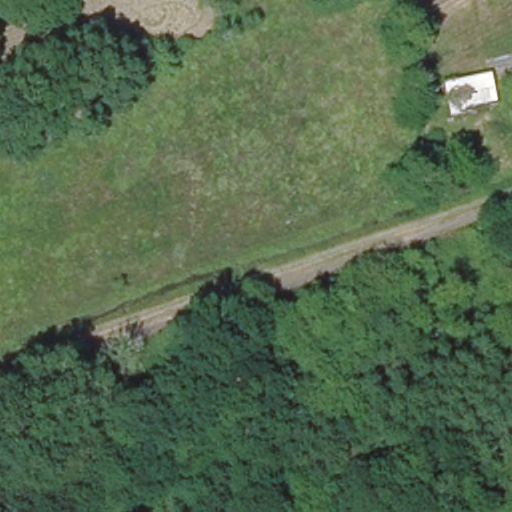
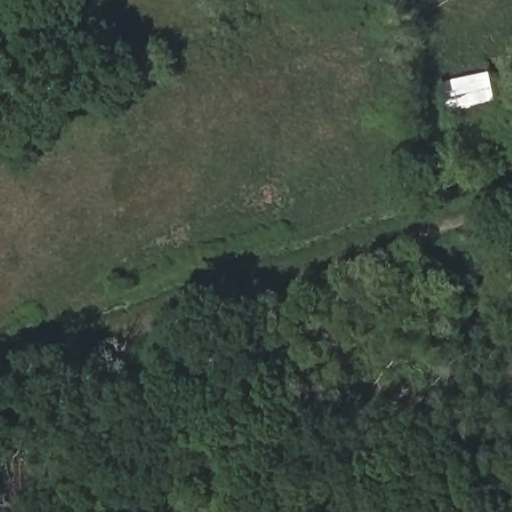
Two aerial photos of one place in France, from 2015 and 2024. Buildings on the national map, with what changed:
unchanged [(220,0),(232,0),(234,7),(223,11),(220,0)]
unchanged [(212,38),(216,50),(197,58),(197,60),(187,63),(181,49),(212,38)]
unchanged [(487,75),(495,103),(451,114),(444,86),(487,75)]
unchanged [(456,141),(465,139),(473,172),(464,175),(456,141)]

